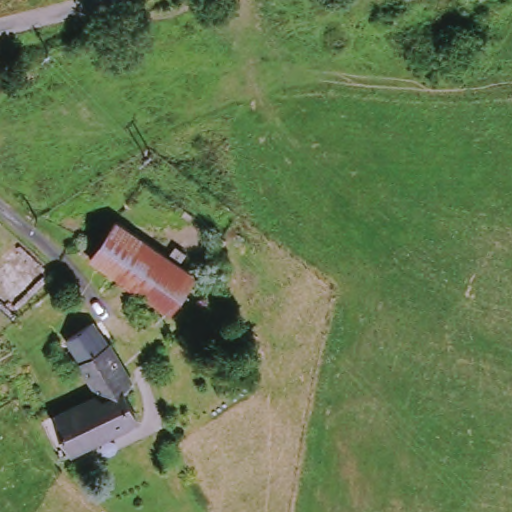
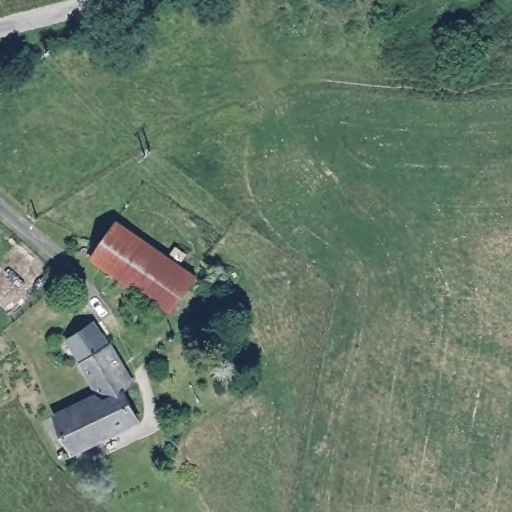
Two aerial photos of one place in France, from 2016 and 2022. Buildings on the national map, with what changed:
unchanged [(181,266),(189,271),(206,276),(173,315),(88,245),(115,218),(181,266)]
unchanged [(100,395),(71,340),(103,320),(118,347),(121,346),(134,376),(100,395)]
unchanged [(104,402),(128,388),(143,419),(83,448),(68,412),(100,395),(104,402)]

